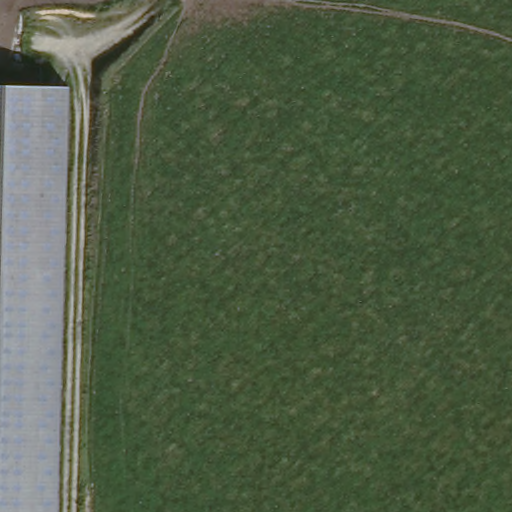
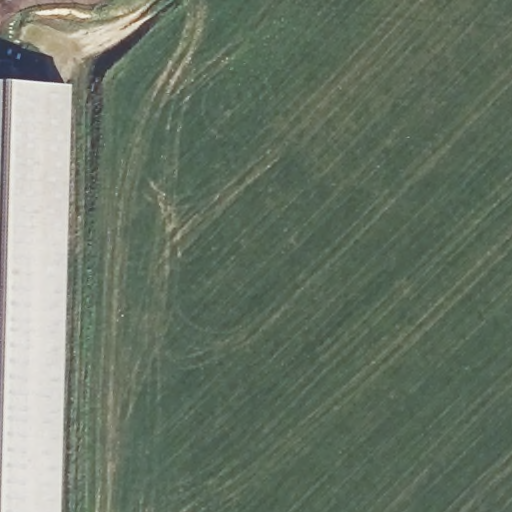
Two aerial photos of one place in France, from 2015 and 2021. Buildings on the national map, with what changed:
unchanged [(0,87),(77,88),(63,512),(0,512),(0,87)]

